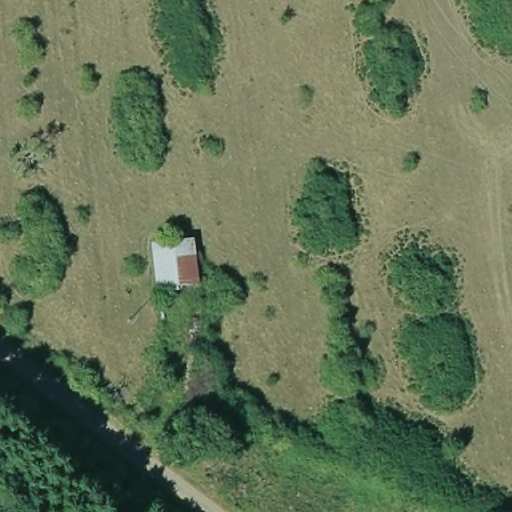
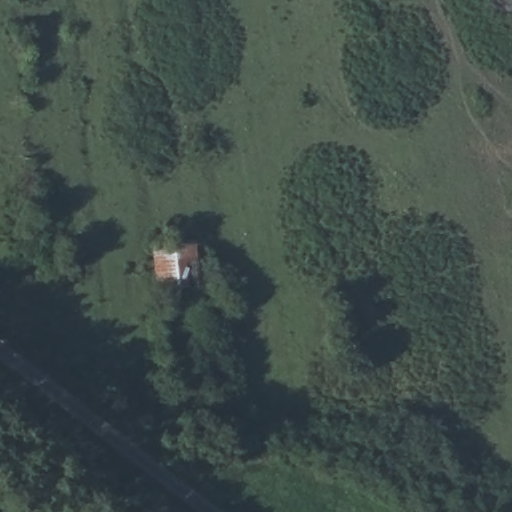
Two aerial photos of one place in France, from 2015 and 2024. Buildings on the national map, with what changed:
unchanged [(139,243),(189,235),(191,289),(147,296),(139,243)]

